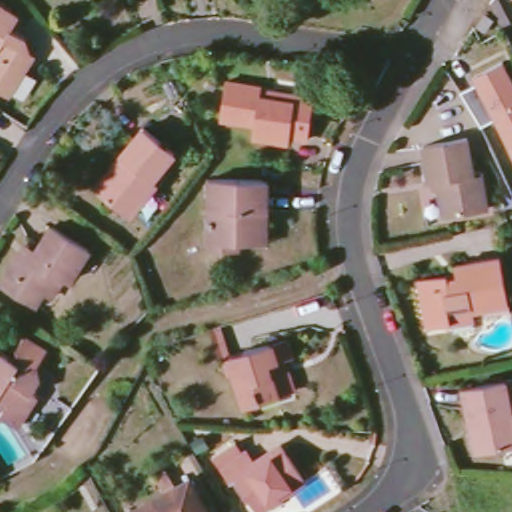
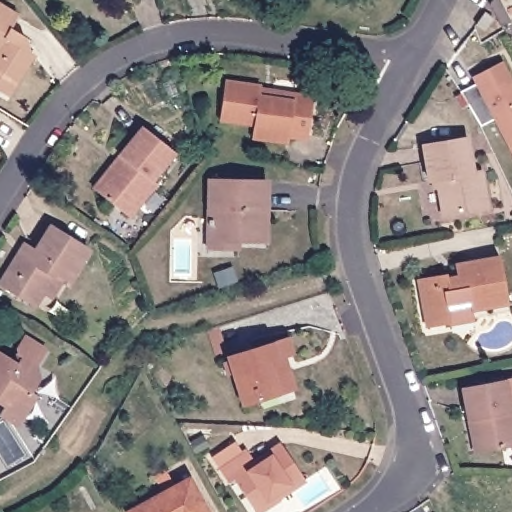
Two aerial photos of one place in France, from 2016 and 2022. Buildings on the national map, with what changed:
unchanged [(5,89),(0,85),(0,0),(1,0),(19,11),(12,24),(27,33),(22,41),(32,47),(36,50),(10,92),(5,89)]
unchanged [(498,0),(509,22),(502,26),(490,3),(492,0),(498,0)]
unchanged [(485,12),(494,18),(485,31),(477,25),(485,12)]
unchanged [(512,144),(509,146),(492,117),(480,124),(459,89),(475,82),(471,75),(502,59),(512,78),(512,144)]
unchanged [(262,87),(260,96),(295,102),(296,96),(314,99),(309,139),(290,136),(290,142),(254,137),(255,124),(222,119),(227,81),(262,87)]
unchanged [(120,156),(144,127),(175,152),(153,180),(157,183),(130,216),(100,192),(94,188),(120,156)]
unchanged [(467,137),(472,172),(480,171),(483,186),(487,208),(443,215),(440,193),(437,180),(429,181),(423,145),(467,137)]
unchanged [(210,208),(212,208),(213,195),(210,195),(210,178),(263,179),(262,209),(268,209),(267,242),(262,242),(239,242),(239,250),(209,249),(210,225),(210,208)]
unchanged [(44,291),(36,305),(1,283),(20,253),(25,245),(37,251),(52,226),(90,249),(70,281),(64,277),(52,296),(44,291)]
unchanged [(451,325),(450,323),(428,327),(419,278),(447,274),(447,278),(457,277),(455,265),(500,257),(509,304),(471,310),(472,314),(473,322),(451,325)]
unchanged [(229,322),(239,352),(228,356),(219,326),(229,322)]
unchanged [(255,400),(245,367),(240,369),(236,357),(242,356),(240,352),(292,335),(297,333),(302,348),(297,350),(294,351),(302,378),(305,383),(270,394),(255,400)]
unchanged [(19,362),(22,356),(37,366),(41,381),(33,392),(38,395),(18,426),(0,415),(5,407),(0,404),(0,351),(19,362)]
unchanged [(462,389),(512,379),(512,445),(481,452),(475,452),(468,420),(462,389)]
unchanged [(260,512),(257,512),(255,508),(235,480),(230,483),(212,457),(236,441),(244,452),(247,450),(255,461),(282,443),(306,480),(280,497),(280,499),(260,512)]
unchanged [(151,475),(160,470),(170,487),(185,479),(203,512),(125,512),(160,492),(151,475)]

